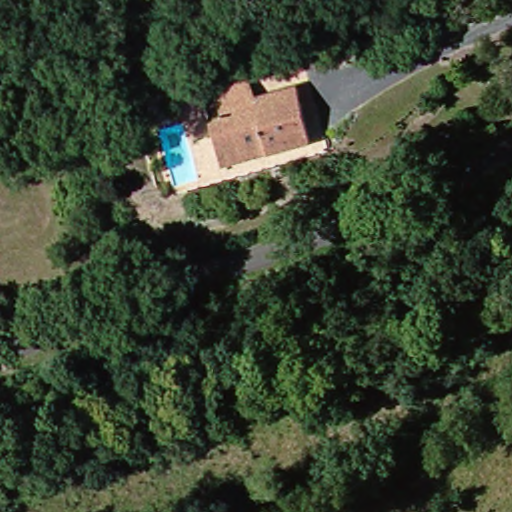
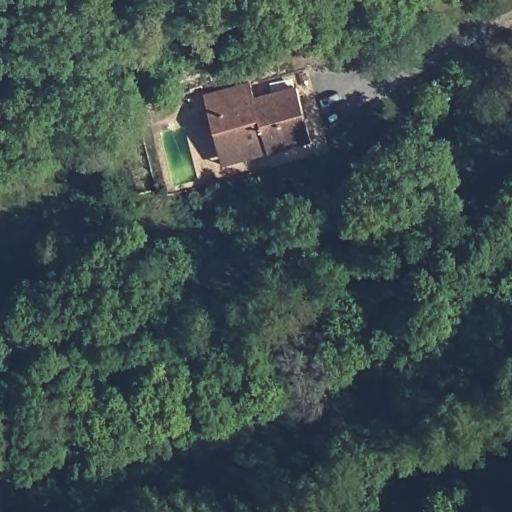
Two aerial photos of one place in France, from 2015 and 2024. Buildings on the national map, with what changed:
unchanged [(210,154),(198,103),(244,93),(248,108),(294,98),(303,141),(258,153),(213,166),(210,154)]

